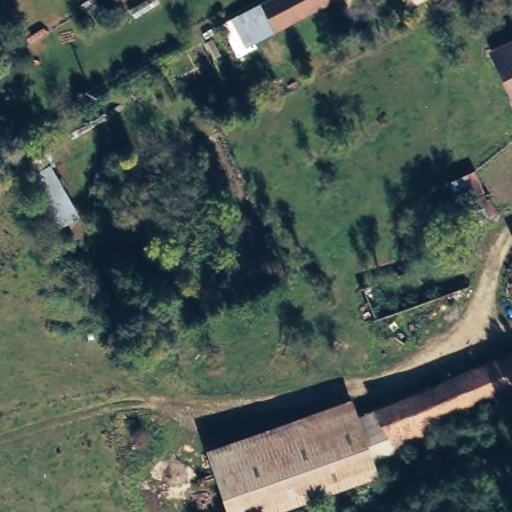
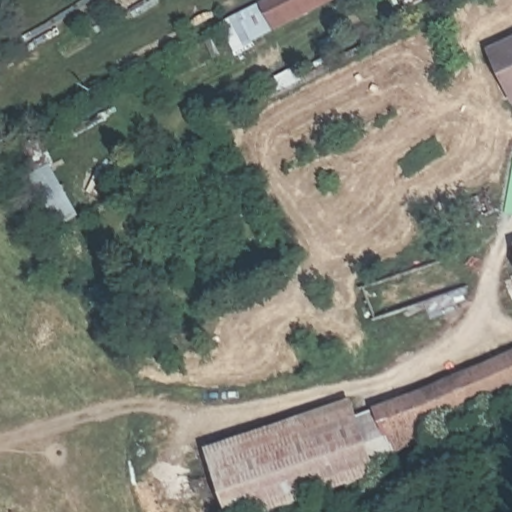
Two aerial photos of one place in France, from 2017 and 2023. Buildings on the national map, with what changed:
unchanged [(286,18),(300,36),(261,59),(241,1),(244,0),(320,0),(286,18)]
unchanged [(512,38),(512,100),(488,49),(512,38)]
unchanged [(512,349),(512,398),(387,450),(371,407),(512,349)]
unchanged [(372,461),(378,477),(276,512),(228,512),(205,446),(352,399),(372,461)]

